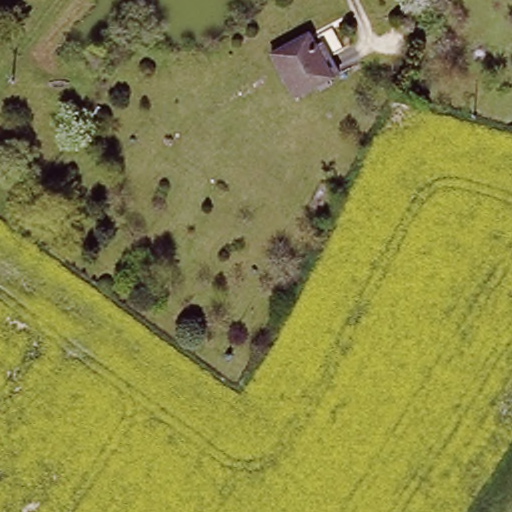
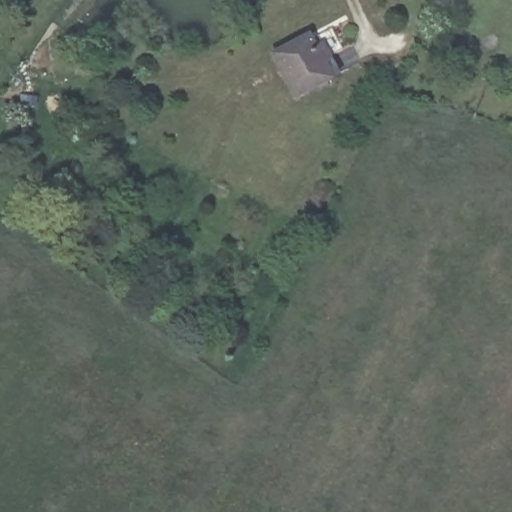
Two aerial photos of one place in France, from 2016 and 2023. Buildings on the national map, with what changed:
unchanged [(311,35),(321,52),(330,47),(344,73),(299,98),(275,55),(311,35)]

